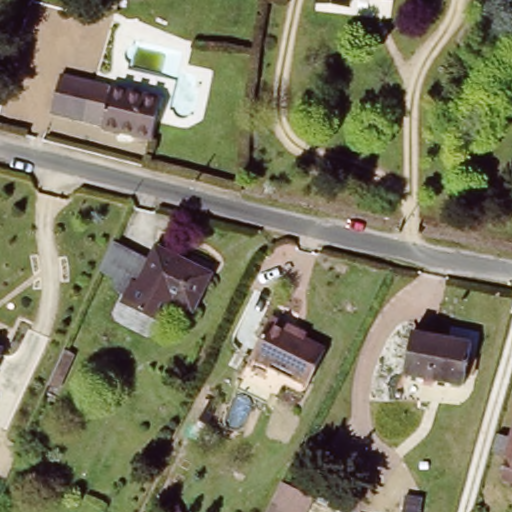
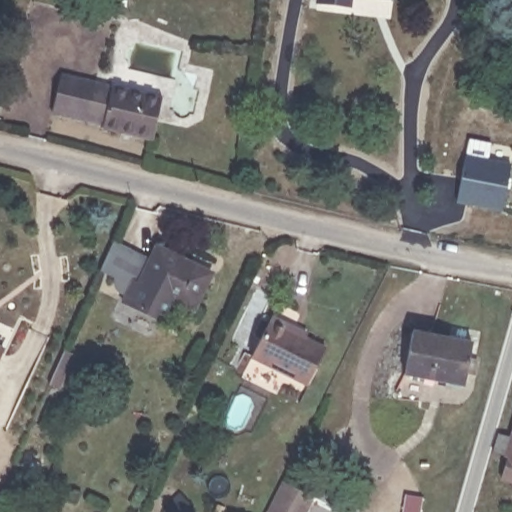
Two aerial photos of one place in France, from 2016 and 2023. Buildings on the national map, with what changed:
unchanged [(155,138),(105,126),(105,123),(39,107),(48,69),(165,96),(155,138)]
new [(458,204),(467,157),(511,166),(502,213),(458,204)]
unchanged [(163,321),(120,302),(124,293),(120,291),(115,288),(114,285),(113,281),(114,276),(99,270),(113,240),(148,258),(136,283),(171,300),(163,321)]
unchanged [(153,247),(184,262),(187,255),(196,259),(193,266),(206,272),(188,308),(136,283),(153,247)]
unchanged [(305,380),(250,352),(271,312),(291,322),(305,330),(303,334),(323,345),(305,380)]
unchanged [(407,327),(417,329),(467,338),(460,379),(400,368),(402,358),(407,327)]
unchanged [(44,383),(60,348),(64,349),(71,353),(54,388),(48,384),(44,383)]
unchanged [(0,352),(0,349),(1,350),(0,352)]
unchanged [(497,478),(499,471),(495,470),(499,455),(488,452),(494,430),(506,433),(512,411),(512,483),(497,478)]
unchanged [(332,459),(348,467),(329,503),(314,495),(332,459)]

